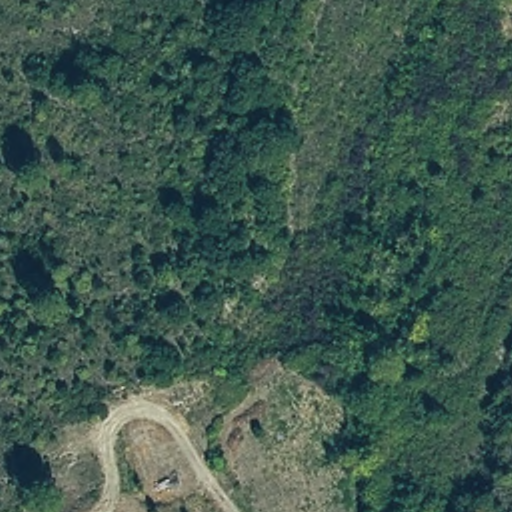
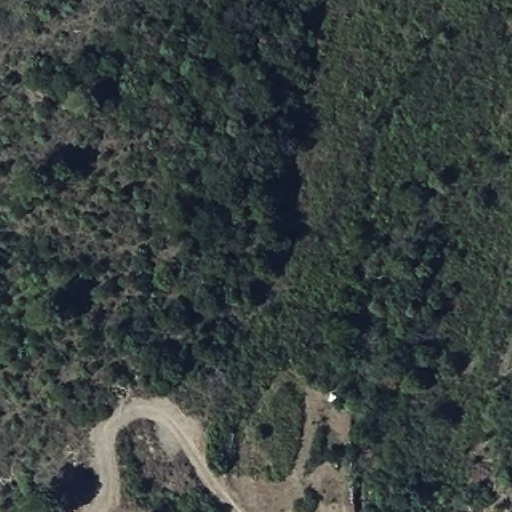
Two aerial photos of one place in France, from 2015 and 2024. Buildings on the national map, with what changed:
unchanged [(485,506),(488,512),(477,512),(485,506)]

